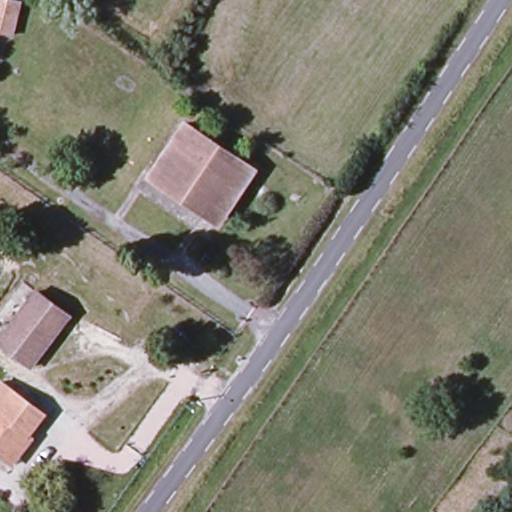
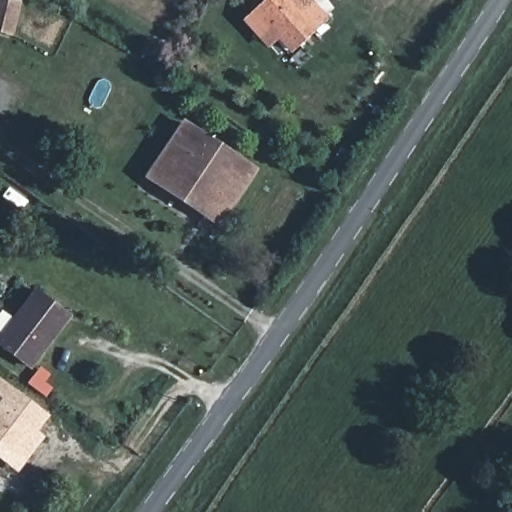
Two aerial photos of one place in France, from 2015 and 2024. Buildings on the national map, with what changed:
unchanged [(0,38),(0,0),(7,0),(19,4),(11,41),(0,38)]
new [(266,0),(312,0),(330,20),(291,56),(277,40),(268,48),(244,20),(266,0)]
unchanged [(144,184),(185,126),(254,176),(239,196),(213,232),(197,220),(144,184)]
unchanged [(2,343),(40,293),(73,319),(35,369),(2,343)]
unchanged [(31,446),(10,473),(6,470),(2,466),(0,465),(0,410),(12,394),(43,417),(25,441),(26,442),(31,446)]

